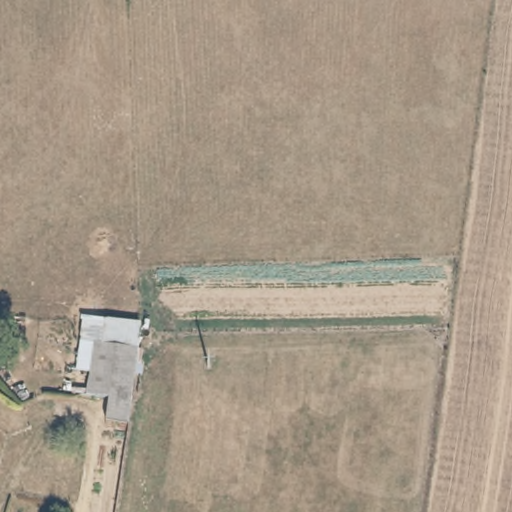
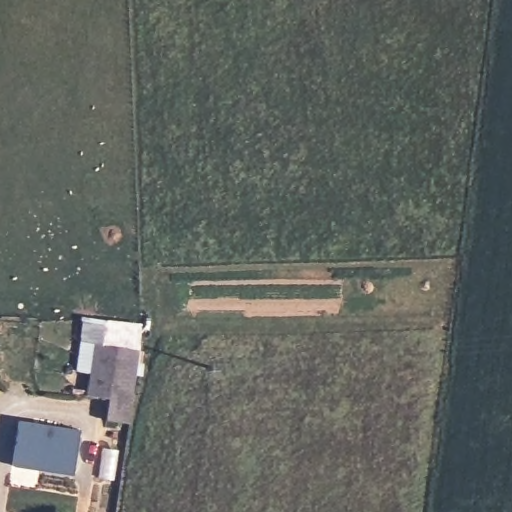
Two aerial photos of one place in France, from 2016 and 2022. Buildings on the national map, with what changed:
unchanged [(143,320),(130,426),(104,423),(107,398),(85,396),(89,378),(70,374),(82,314),(143,320)]
new [(73,474),(12,465),(19,421),(79,430),(73,474)]

